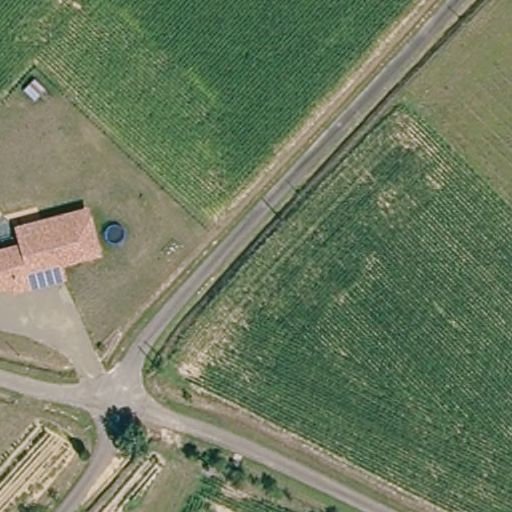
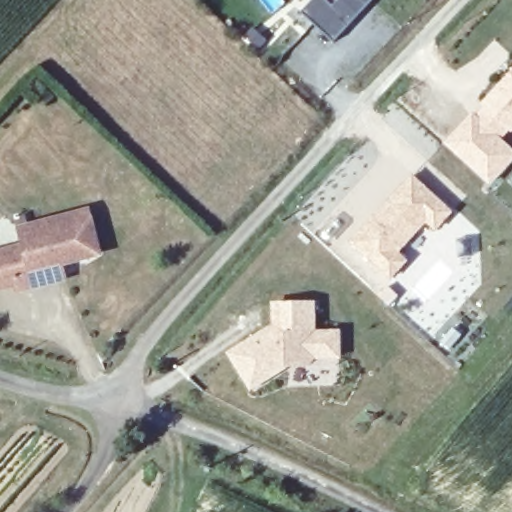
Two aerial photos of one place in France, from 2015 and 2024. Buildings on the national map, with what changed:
new [(301,14),(314,0),(322,0),(325,3),(333,4),(337,0),(371,0),(361,11),(347,15),(327,37),(301,14)]
new [(478,103),(512,68),(512,133),(511,134),(478,103)]
new [(502,139),(512,148),(512,163),(490,186),(443,144),(473,112),(476,115),(482,107),(508,131),(502,139)]
new [(411,173),(453,211),(434,231),(426,224),(400,251),(409,260),(389,280),(348,242),(411,173)]
unchanged [(20,244),(16,225),(89,205),(102,252),(64,262),(68,278),(10,293),(9,287),(0,291),(0,248),(20,244)]
new [(226,351),(271,325),(270,303),(315,302),(316,331),(340,331),(340,360),(313,361),(312,367),(283,367),(250,391),(226,351)]

